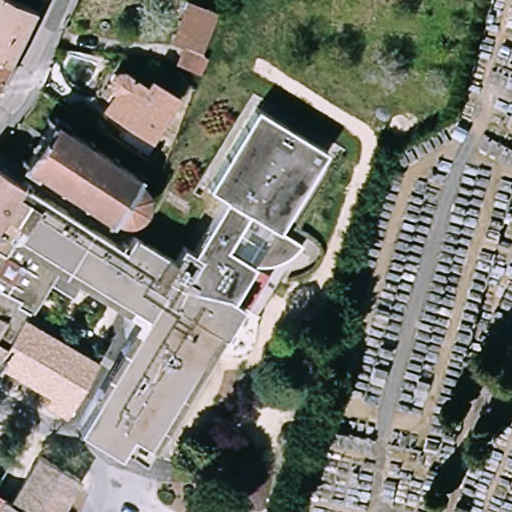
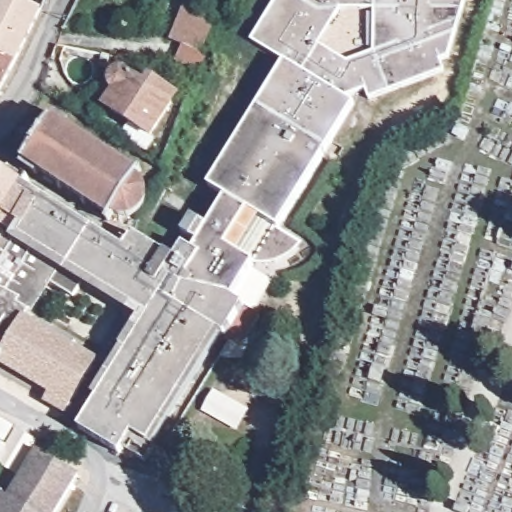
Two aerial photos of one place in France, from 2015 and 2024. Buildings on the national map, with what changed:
unchanged [(37,35),(27,58),(17,78),(1,100),(0,100),(0,6),(3,0),(23,0),(47,12),(37,35)]
new [(297,0),(304,4),(307,0),(464,0),(447,58),(439,62),(443,71),(368,100),(365,90),(340,96),(354,104),(329,145),(272,105),(262,98),(284,62),(250,41),(276,0),(297,0)]
unchanged [(187,65),(192,49),(180,45),(195,5),(225,13),(210,52),(217,55),(210,72),(187,65)]
unchanged [(110,81),(110,78),(110,75),(111,72),(113,69),(115,67),(118,66),(122,66),(125,66),(149,80),(152,74),(180,91),(153,133),(105,103),(116,87),(112,83),(110,81)]
unchanged [(126,236),(127,234),(129,232),(130,233),(133,234),(140,225),(179,253),(188,240),(195,244),(198,247),(235,194),(218,182),(272,105),(340,153),(285,231),(306,245),(305,246),(305,247),(305,248),(303,249),(300,252),(300,254),(299,254),(297,255),(297,256),(296,257),(295,258),(294,258),(292,259),(290,260),(288,261),(285,262),(284,263),(283,263),(280,264),(279,264),(278,264),(277,265),(275,265),(272,265),(269,265),(267,265),(266,265),(265,265),(263,264),(261,264),(260,264),(237,298),(236,298),(247,306),(227,335),(218,329),(150,437),(133,427),(120,447),(80,421),(152,311),(63,255),(28,309),(97,354),(66,405),(47,393),(53,385),(0,351),(7,341),(0,337),(0,324),(6,314),(0,311),(3,306),(0,305),(0,153),(53,187),(126,236)]
unchanged [(76,126),(73,130),(147,176),(143,181),(145,183),(148,187),(150,190),(150,195),(150,199),(150,203),(148,207),(146,210),(143,213),(140,215),(135,217),(132,218),(127,218),(123,217),(120,220),(47,174),(44,178),(27,168),(60,117),(76,126)]
unchanged [(0,311),(0,305),(3,306),(0,311)]
unchanged [(0,324),(0,311),(6,314),(0,324)]
unchanged [(0,351),(0,337),(7,341),(0,351)]
unchanged [(57,512),(0,512),(0,486),(13,495),(41,446),(81,470),(57,512)]

